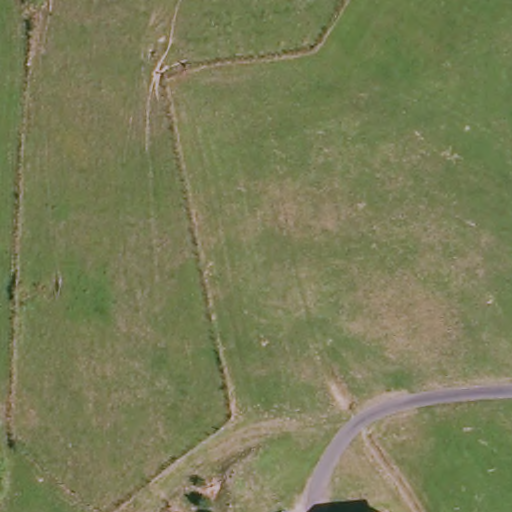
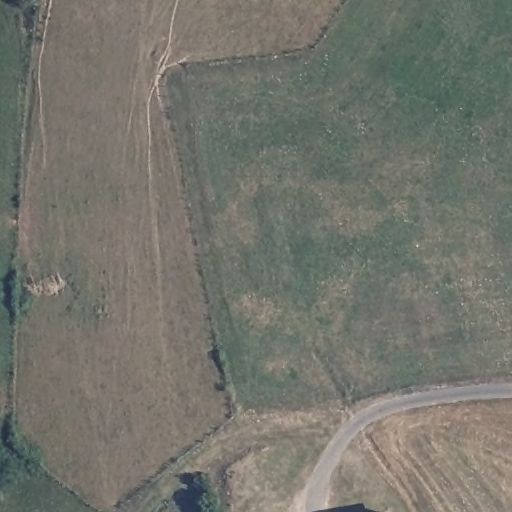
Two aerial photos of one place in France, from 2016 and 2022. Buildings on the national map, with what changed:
unchanged [(386,511),(387,512),(384,512),(386,511)]

